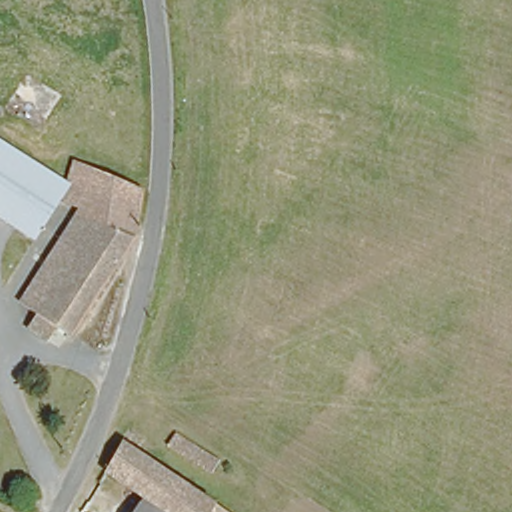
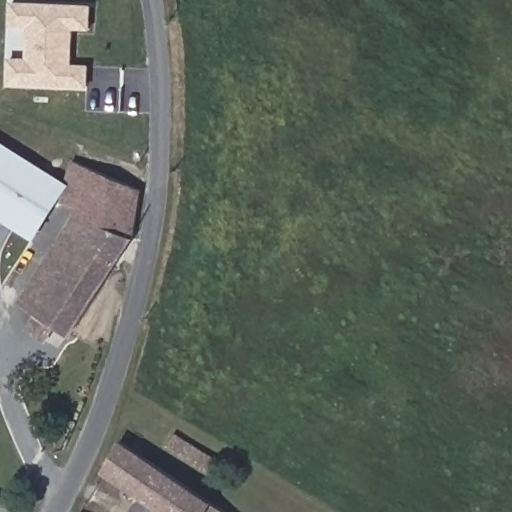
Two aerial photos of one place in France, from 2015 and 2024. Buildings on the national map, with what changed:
new [(73,30),(72,65),(90,65),(88,89),(10,86),(11,57),(25,57),(27,28),(10,27),(11,2),(91,6),(91,30),(73,30)]
unchanged [(65,184),(36,238),(0,219),(0,147),(2,149),(65,184)]
unchanged [(135,241),(133,240),(80,219),(59,210),(79,162),(143,190),(135,241)]
unchanged [(116,265),(71,239),(80,219),(133,240),(116,265)]
unchanged [(20,305),(65,235),(71,239),(116,265),(70,336),(20,305)]
unchanged [(144,462),(127,495),(101,476),(118,445),(144,462)]
unchanged [(206,512),(154,512),(141,504),(127,495),(144,462),(208,507),(206,512)]
unchanged [(141,504),(154,512),(136,512),(141,504)]
unchanged [(215,512),(206,512),(208,507),(215,512)]

